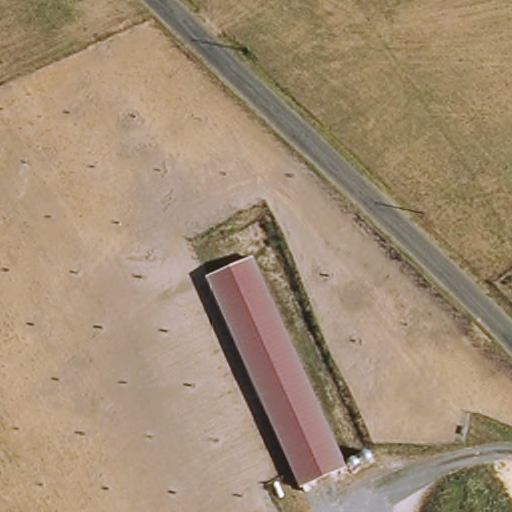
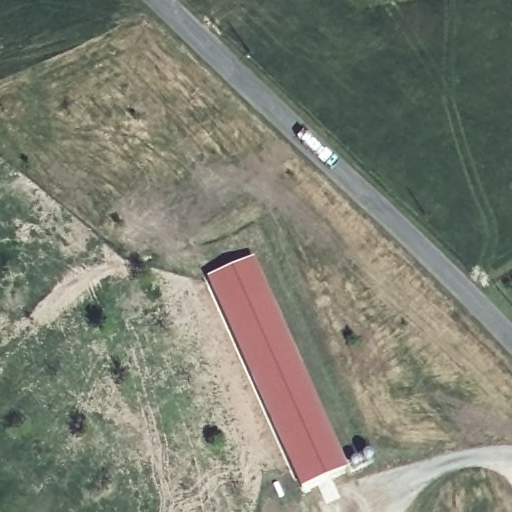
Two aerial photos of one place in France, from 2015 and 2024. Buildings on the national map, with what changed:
unchanged [(207,276),(254,255),(347,466),(300,486),(207,276)]

